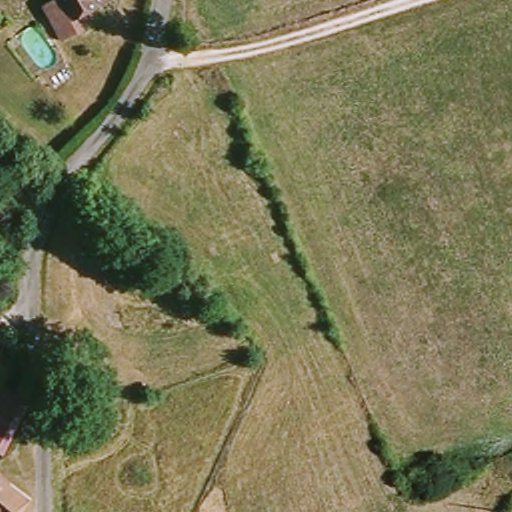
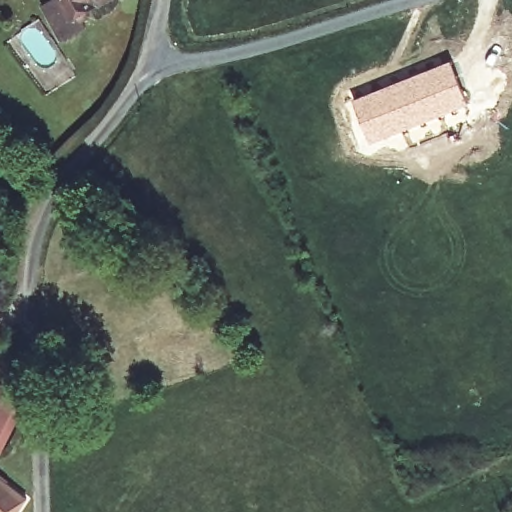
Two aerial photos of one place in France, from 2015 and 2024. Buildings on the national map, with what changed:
unchanged [(70,34),(62,39),(55,42),(36,7),(49,0),(97,0),(80,10),(84,18),(76,22),(80,29),(70,34)]
new [(470,101),(372,141),(355,100),(453,61),(470,101)]
unchanged [(8,387),(26,395),(0,449),(0,402),(8,387)]
unchanged [(27,493),(15,512),(0,512),(0,478),(27,493)]

